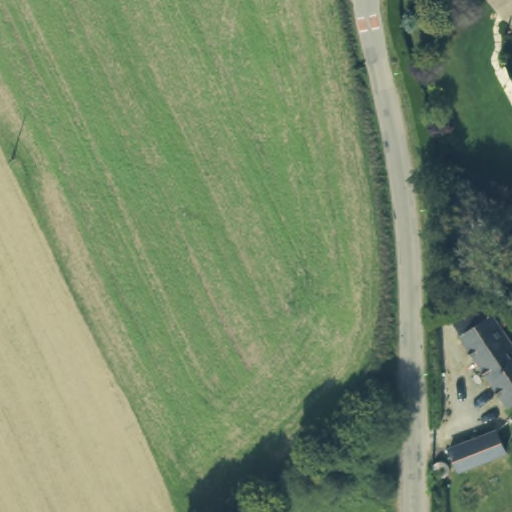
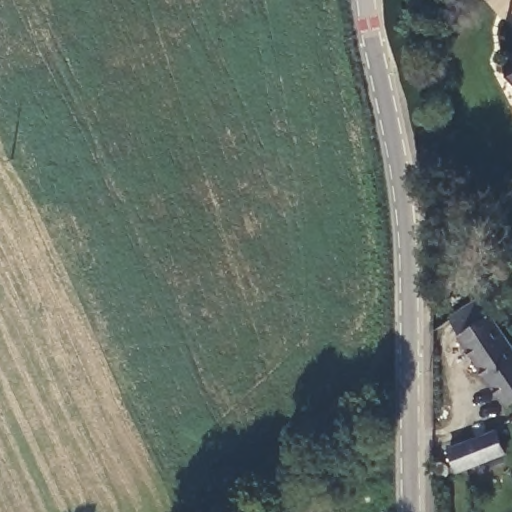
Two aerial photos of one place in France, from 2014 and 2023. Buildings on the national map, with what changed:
unchanged [(512,70),(509,65),(512,63),(512,70)]
unchanged [(454,318),(480,301),(491,317),(507,306),(512,313),(512,327),(505,326),(512,337),(512,405),(509,407),(454,318)]
unchanged [(454,447),(498,427),(509,450),(502,455),(480,464),(462,472),(454,447)]
unchanged [(445,465),(442,468),(437,467),(434,463),(435,460),(438,457),(442,457),(445,460),(445,465)]

